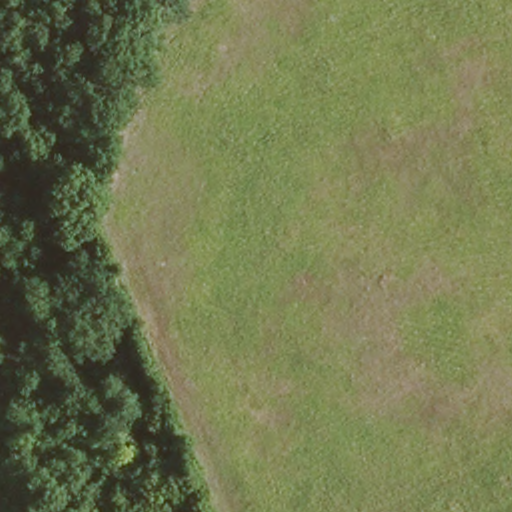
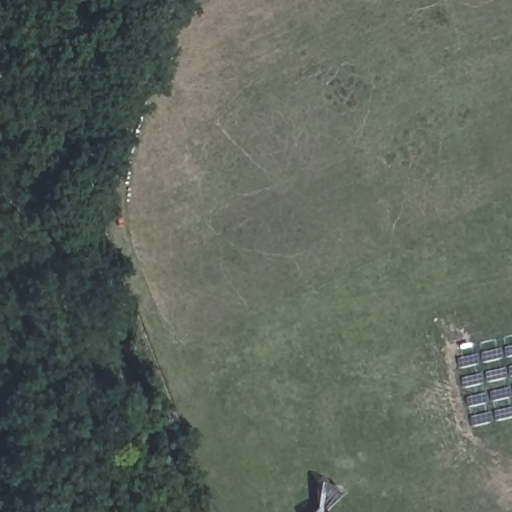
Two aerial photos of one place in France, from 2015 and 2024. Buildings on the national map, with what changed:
[]

